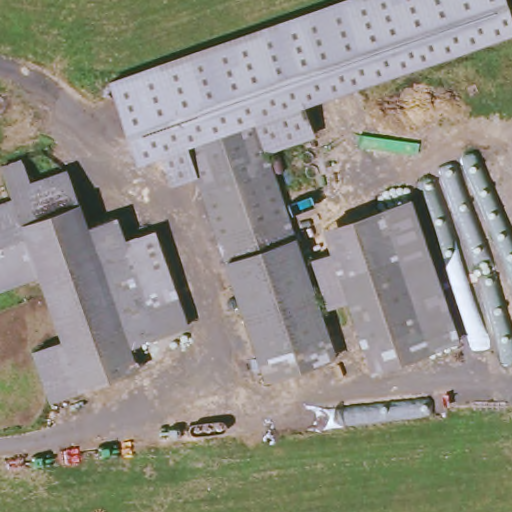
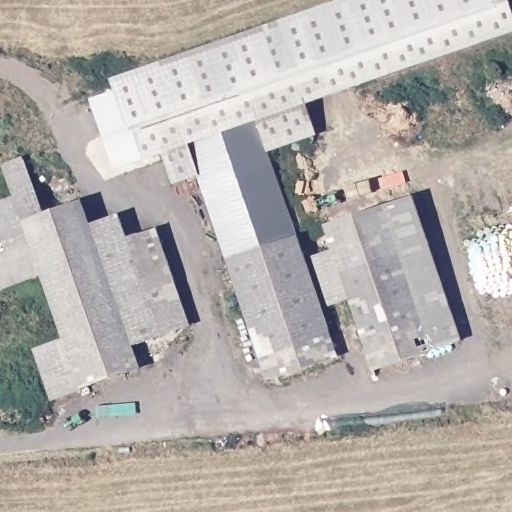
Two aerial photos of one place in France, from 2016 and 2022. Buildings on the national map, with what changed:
unchanged [(170,175),(160,148),(137,154),(115,73),(352,0),(512,0),(512,41),(307,101),(317,132),(267,146),(323,329),(251,352),(195,168),(170,175)]
unchanged [(23,212),(12,177),(34,171),(42,195),(78,186),(89,220),(31,237),(23,212)]
unchanged [(415,199),(459,346),(428,355),(383,209),(415,199)]
unchanged [(372,372),(348,299),(330,305),(315,255),(332,249),(325,227),(383,209),(428,355),(372,372)]
unchanged [(46,285),(0,299),(0,219),(23,212),(31,237),(46,285)]
unchanged [(134,366),(141,390),(85,407),(68,355),(46,285),(31,237),(89,220),(96,243),(134,366)]
unchanged [(96,243),(122,237),(130,259),(160,252),(190,349),(134,366),(96,243)]
unchanged [(332,355),(259,377),(251,352),(323,329),(332,355)]
unchanged [(85,407),(52,416),(36,365),(68,355),(85,407)]

